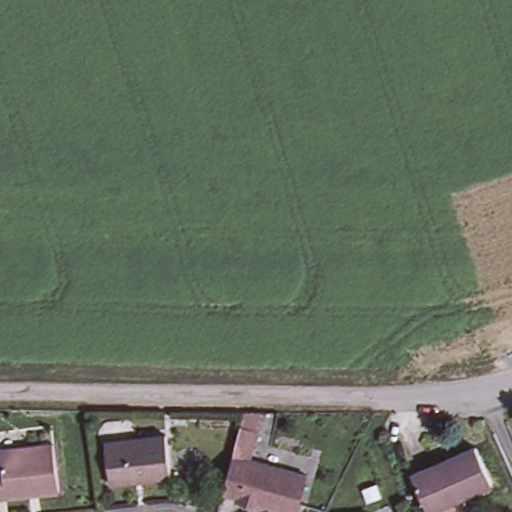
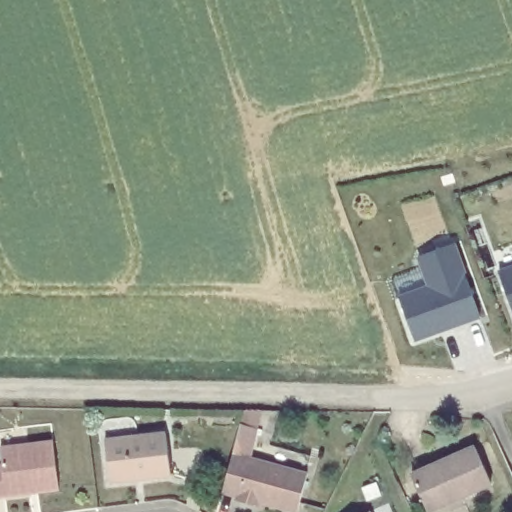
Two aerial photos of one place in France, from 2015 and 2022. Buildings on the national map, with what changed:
new [(415,342),(399,299),(429,288),(419,258),(454,244),(481,318),(452,328),(442,332),(415,342)]
new [(512,267),(512,310),(498,272),(512,267)]
unchanged [(232,497),(233,493),(219,489),(229,451),(237,420),(253,424),(246,456),(298,469),(289,507),(256,499),(255,503),(248,501),(232,497)]
unchanged [(104,441),(165,434),(169,476),(108,482),(104,441)]
unchanged [(50,443),(55,491),(2,497),(0,497),(0,449),(50,443)]
unchanged [(476,449),(491,486),(429,512),(428,512),(413,477),(476,449)]

